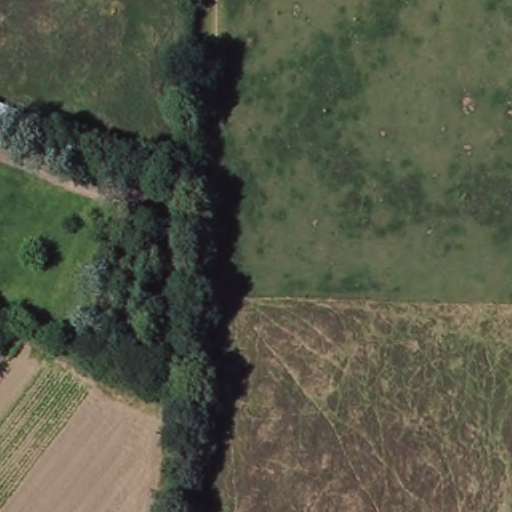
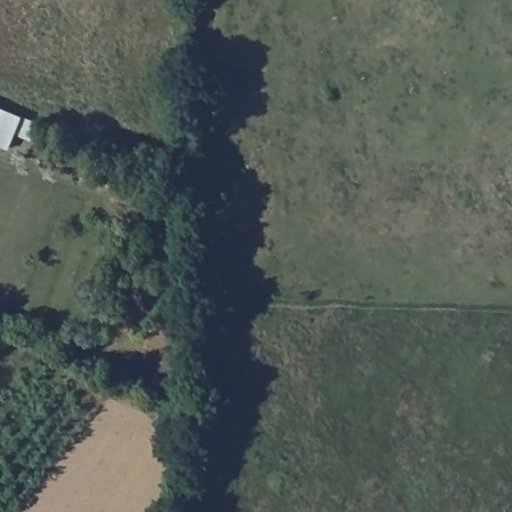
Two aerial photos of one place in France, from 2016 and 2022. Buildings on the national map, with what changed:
unchanged [(43,126),(37,140),(14,129),(5,147),(0,146),(0,107),(43,126)]

